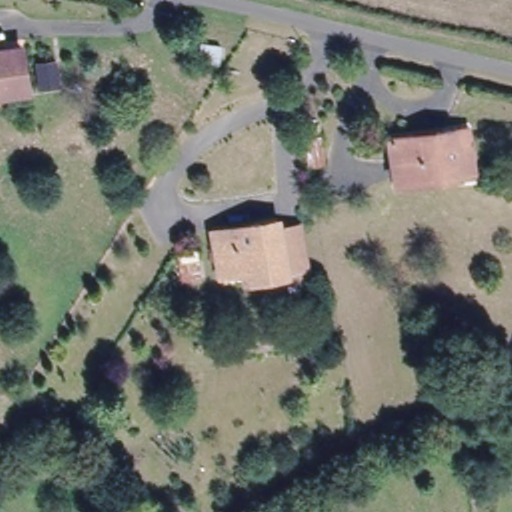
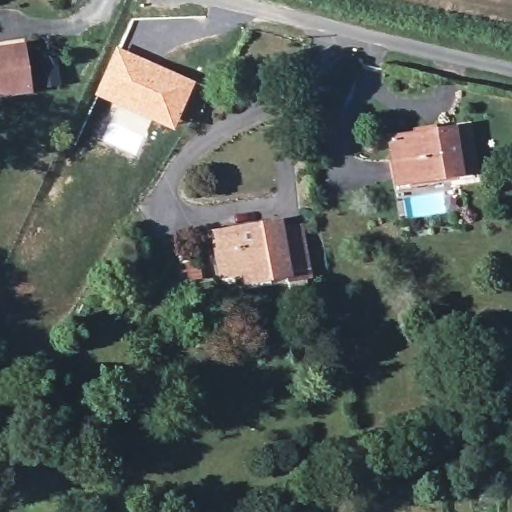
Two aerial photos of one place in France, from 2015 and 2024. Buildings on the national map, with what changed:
unchanged [(22,89),(0,91),(0,45),(16,43),(22,89)]
new [(116,46),(195,82),(173,130),(94,95),(116,46)]
unchanged [(462,118),(473,171),(399,185),(397,174),(457,163),(450,121),(462,118)]
unchanged [(457,163),(397,174),(390,131),(450,121),(457,163)]
unchanged [(244,260),(223,263),(218,220),(267,213),(284,211),(285,222),(304,220),(311,266),(275,272),(246,275),(244,260)]

